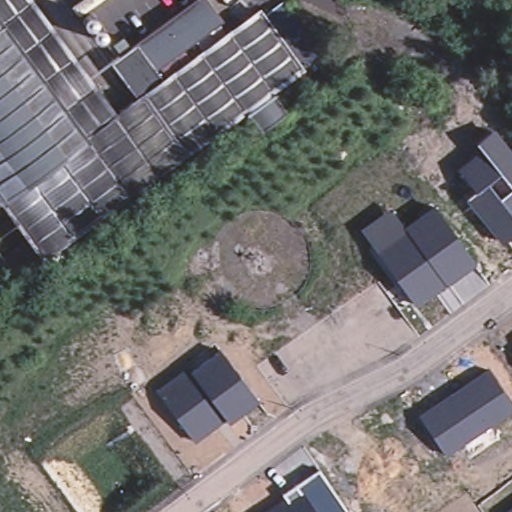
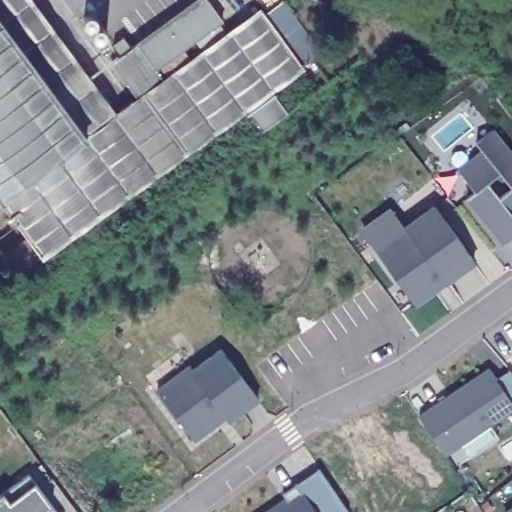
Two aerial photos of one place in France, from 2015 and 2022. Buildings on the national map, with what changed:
unchanged [(219,43),(262,12),(302,68),(248,108),(247,109),(47,257),(5,200),(0,203),(0,0),(33,0),(117,116),(219,43)]
unchanged [(223,20),(212,27),(157,69),(163,79),(138,97),(114,62),(198,0),(209,0),(223,20)]
unchanged [(466,199),(474,191),(457,168),(480,147),(475,141),(493,127),(512,151),(512,238),(505,244),(466,199)]
unchanged [(361,228),(390,208),(405,226),(432,205),(475,265),(417,305),(361,228)]
unchanged [(157,389),(190,366),(192,370),(220,350),(259,401),(227,424),(225,420),(195,442),(157,389)]
unchanged [(420,414),(488,367),(512,404),(512,413),(447,455),(420,414)]
unchanged [(281,493),(318,470),(345,512),(264,512),(283,497),(281,493)]
new [(0,512),(0,493),(30,471),(60,512),(0,512)]
unchanged [(502,512),(512,505),(512,512),(502,512)]

